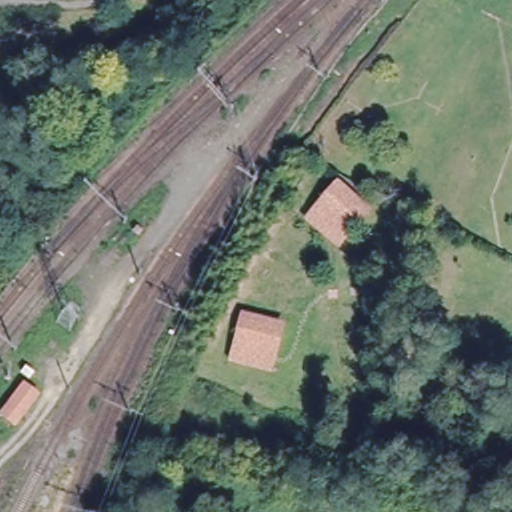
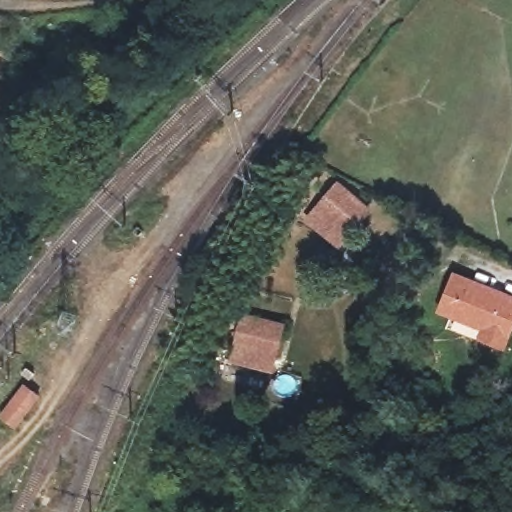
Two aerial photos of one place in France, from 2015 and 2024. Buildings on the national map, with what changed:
unchanged [(337,176),(376,210),(345,246),(307,216),(337,176)]
unchanged [(34,252),(17,239),(42,206),(59,220),(34,252)]
new [(512,293),(512,334),(506,350),(477,339),(481,328),(437,311),(454,269),(512,293)]
unchanged [(288,320),(278,370),(230,359),(242,307),(288,320)]

